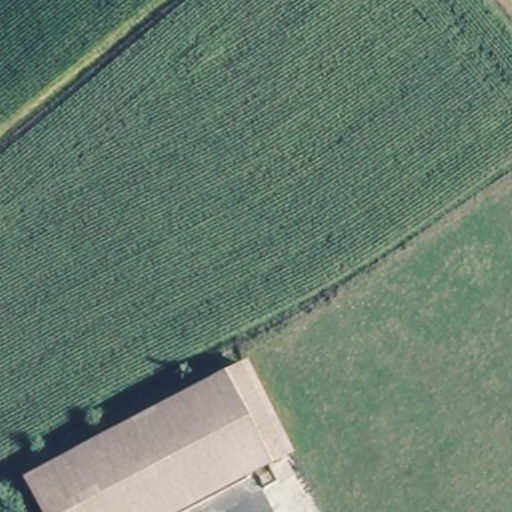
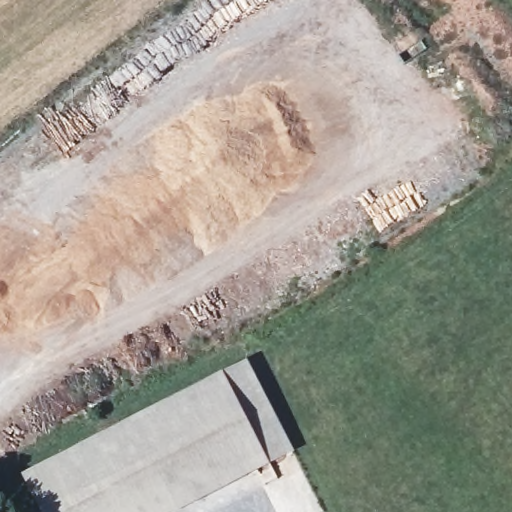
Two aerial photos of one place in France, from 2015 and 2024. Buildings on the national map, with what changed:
unchanged [(271,461),(225,370),(245,360),(252,369),(291,449),(271,461)]
unchanged [(41,512),(22,473),(225,370),(271,461),(170,512),(41,512)]

